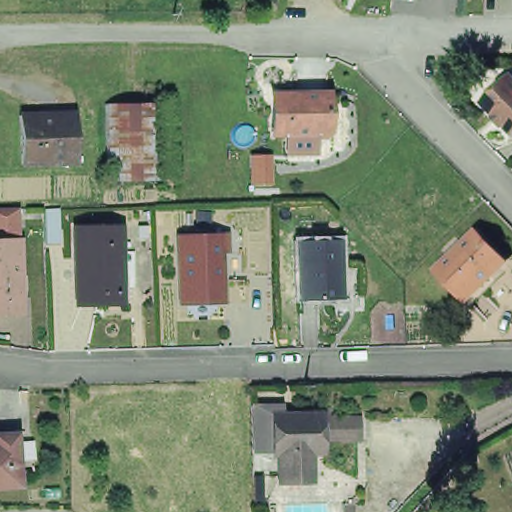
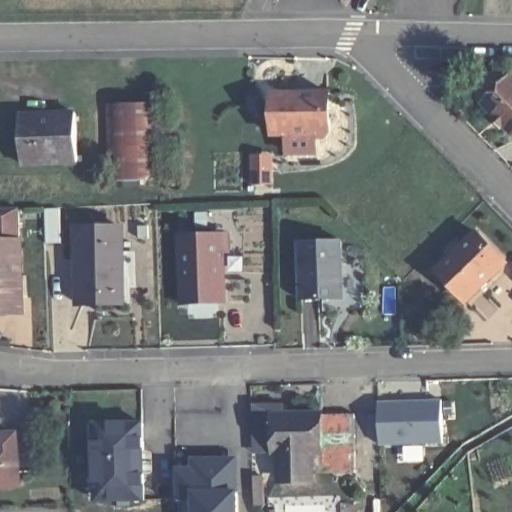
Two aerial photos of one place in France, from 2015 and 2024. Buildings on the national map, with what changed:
unchanged [(486,111),(476,102),(500,79),(512,90),(512,128),(507,133),(498,124),(493,129),(481,116),(486,111)]
unchanged [(328,137),(309,137),(307,131),(271,131),(273,91),(329,93),(328,137)]
unchanged [(108,177),(105,102),(157,100),(159,175),(108,177)]
unchanged [(16,167),(14,120),(68,117),(70,164),(16,167)]
unchanged [(251,182),(250,161),(250,155),(268,154),(268,170),(268,182),(251,182)]
unchanged [(176,236),(196,235),(196,219),(223,217),(226,251),(218,251),(219,301),(178,302),(176,236)]
unchanged [(65,221),(66,260),(51,261),(50,222),(65,221)]
unchanged [(103,305),(79,307),(74,229),(121,227),(125,295),(125,305),(103,305)]
unchanged [(462,303),(430,272),(466,235),(497,265),(462,303)]
unchanged [(301,298),(298,241),(340,240),(342,297),(301,298)]
unchanged [(19,315),(0,315),(0,243),(16,242),(19,315)]
new [(442,400),(444,445),(374,447),(373,401),(442,400)]
unchanged [(276,476),(274,467),(273,448),(266,448),(264,411),(318,410),(320,434),(321,447),(309,447),(310,466),(311,475),(276,476)]
new [(87,483),(86,444),(93,444),(92,425),(103,425),(139,423),(140,450),(141,473),(141,500),(105,501),(94,501),(94,482),(87,483)]
unchanged [(14,445),(14,498),(0,498),(0,445),(14,445)]
new [(191,501),(174,501),(173,469),(198,468),(190,468),(190,458),(198,458),(227,458),(234,458),(234,491),(234,512),(191,512),(191,501)]

